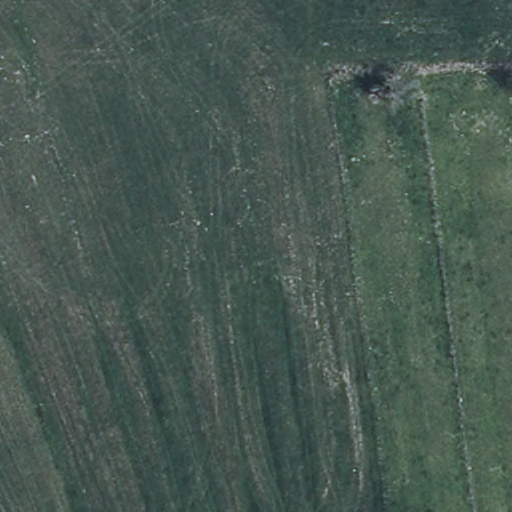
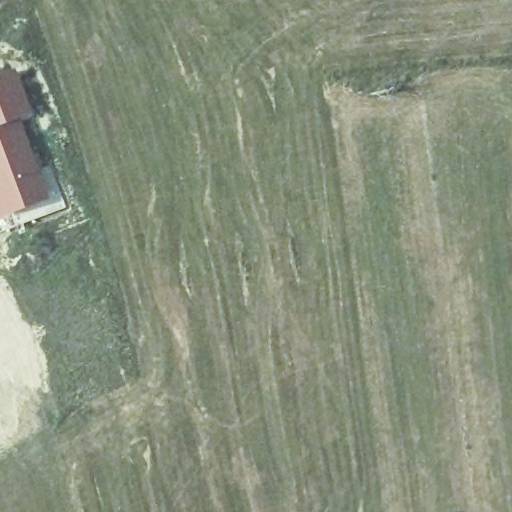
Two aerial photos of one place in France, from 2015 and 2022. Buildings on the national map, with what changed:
new [(25,112),(14,117),(44,197),(0,214),(0,76),(10,72),(25,112)]

